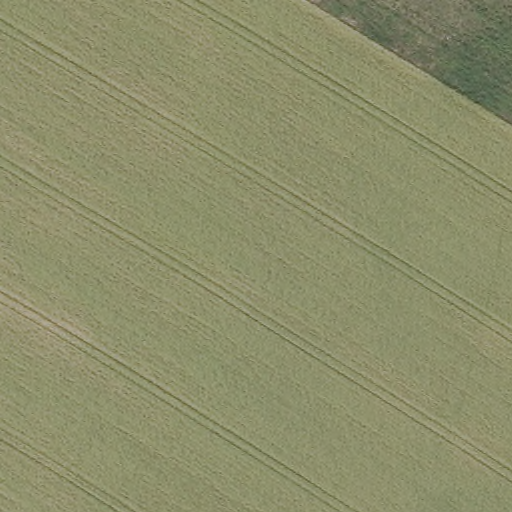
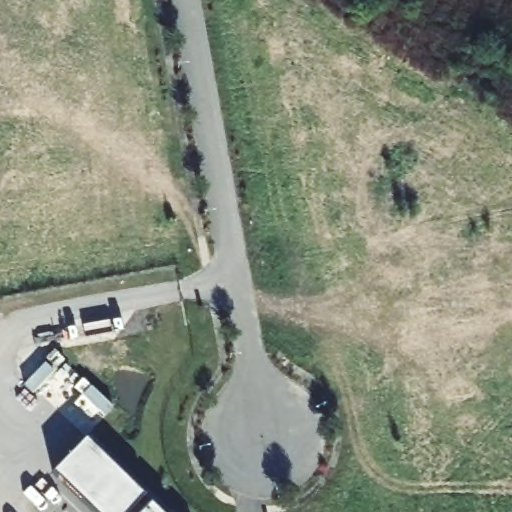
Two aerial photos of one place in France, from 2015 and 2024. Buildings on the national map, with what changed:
new [(138,500),(144,507),(151,499),(165,512),(95,512),(51,472),(85,436),(144,493),(138,500)]

